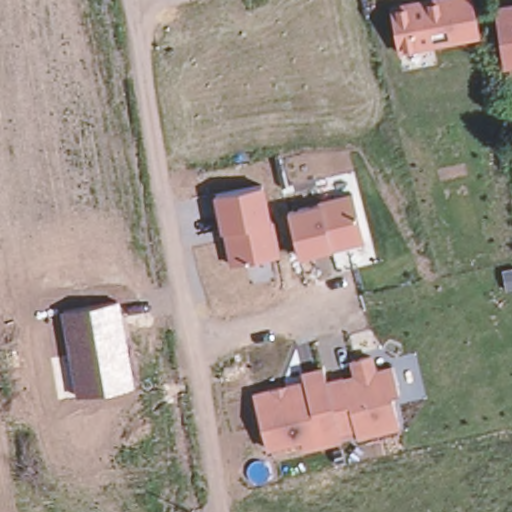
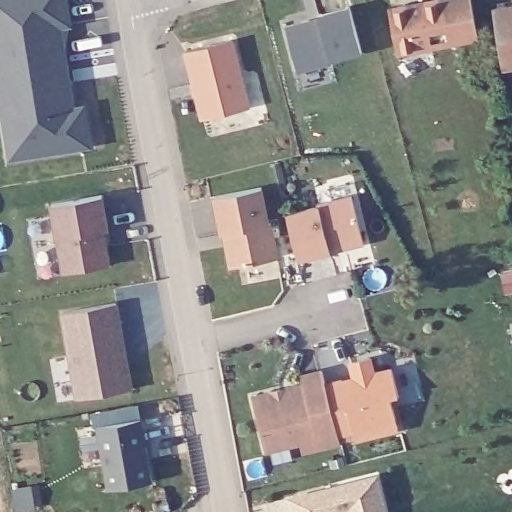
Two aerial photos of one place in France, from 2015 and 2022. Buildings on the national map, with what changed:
new [(59,25),(64,57),(56,58),(60,78),(68,84),(73,111),(83,110),(88,145),(13,157),(7,121),(0,77),(0,0),(65,0),(69,24),(59,25)]
unchanged [(423,0),(474,0),(482,38),(400,55),(390,7),(423,0)]
unchanged [(502,49),(500,1),(512,1),(512,60),(503,60),(502,49)]
new [(321,16),(321,14),(350,6),(363,53),(299,70),(286,25),(321,16)]
new [(190,54),(236,42),(252,110),(206,121),(201,97),(199,97),(196,85),(198,85),(190,54)]
unchanged [(212,197),(266,185),(281,256),(229,267),(212,197)]
unchanged [(286,211),(355,194),(366,244),(299,262),(286,211)]
new [(105,267),(64,275),(52,205),(103,196),(109,231),(104,231),(106,247),(109,262),(110,266),(105,267)]
unchanged [(61,312),(119,301),(134,388),(75,397),(61,312)]
unchanged [(301,442),(266,451),(251,393),(304,382),(302,371),(324,367),(326,380),(351,375),(348,361),(374,355),(377,368),(394,365),(402,396),(394,398),(401,430),(356,440),(354,431),(341,435),(343,443),(304,453),(301,442)]
unchanged [(141,420),(153,483),(108,491),(97,428),(141,420)]
new [(293,500),(379,478),(388,512),(296,512),(293,500)]

